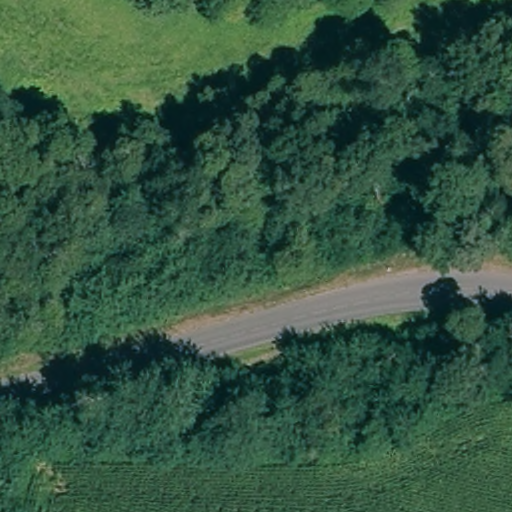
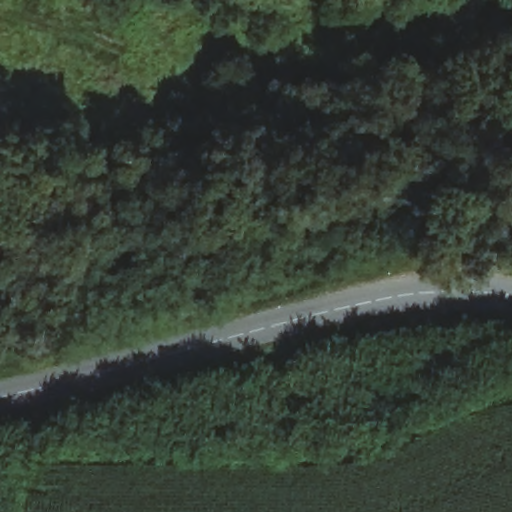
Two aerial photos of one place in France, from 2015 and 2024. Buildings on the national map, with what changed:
[]

